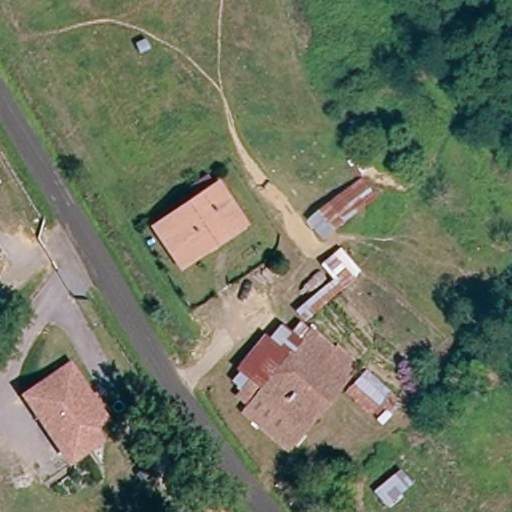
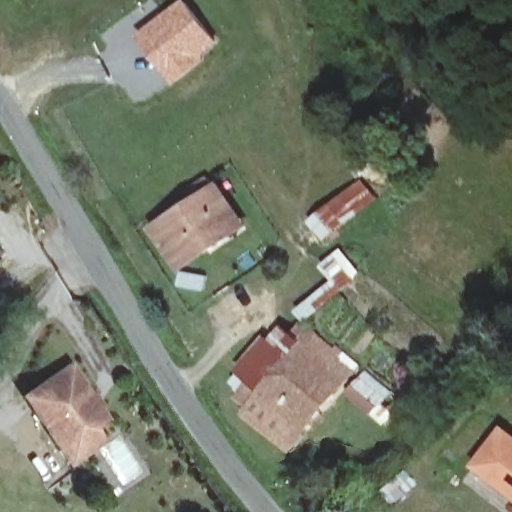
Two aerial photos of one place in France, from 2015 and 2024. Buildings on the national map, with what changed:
new [(173,82),(162,67),(139,36),(184,2),(214,42),(196,55),(200,61),(173,82)]
demolished [(13,210),(2,197),(0,198),(0,152),(30,199),(13,210)]
unchanged [(315,226),(368,185),(381,200),(327,243),(315,226)]
unchanged [(217,239),(175,265),(152,224),(213,187),(232,219),(237,227),(217,239)]
unchanged [(330,277),(322,263),(338,246),(363,271),(350,287),(310,320),(297,310),(330,277)]
unchanged [(242,372),(239,365),(263,335),(267,337),(281,323),(291,332),(298,325),(310,330),(314,327),(336,345),(340,343),(361,364),(290,452),(242,412),(246,406),(235,396),(240,388),(234,382),(242,372)]
unchanged [(77,468),(68,457),(28,406),(71,370),(111,422),(100,432),(109,443),(77,468)]
unchanged [(387,415),(380,408),(372,415),(348,393),(363,375),(398,402),(387,415)]
new [(503,428),(512,435),(512,493),(475,465),(503,428)]

